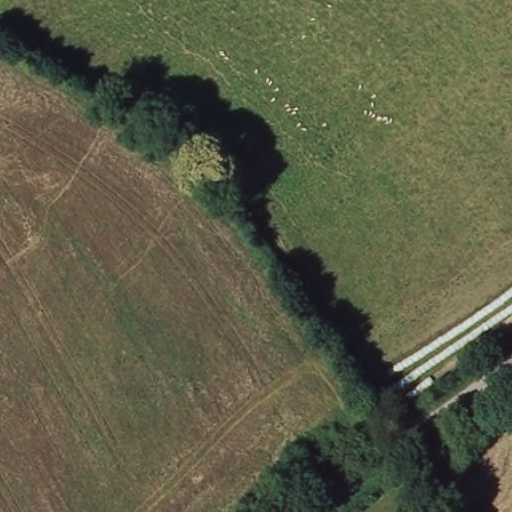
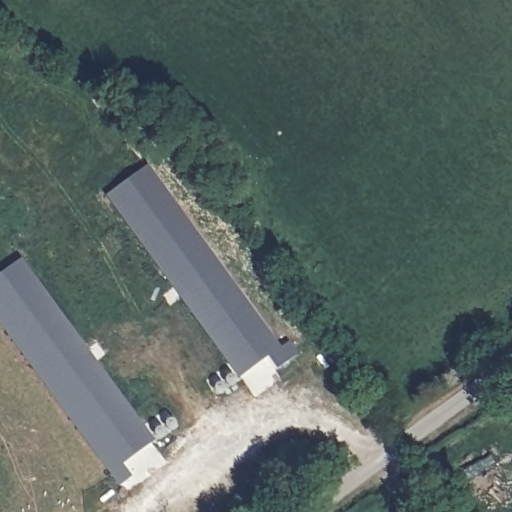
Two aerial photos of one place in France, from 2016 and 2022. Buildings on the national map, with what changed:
new [(149,166),(281,349),(287,343),(296,355),(277,371),(267,357),(239,379),(105,197),(149,166)]
new [(154,439),(122,463),(130,476),(119,486),(0,325),(0,274),(20,259),(154,439)]

